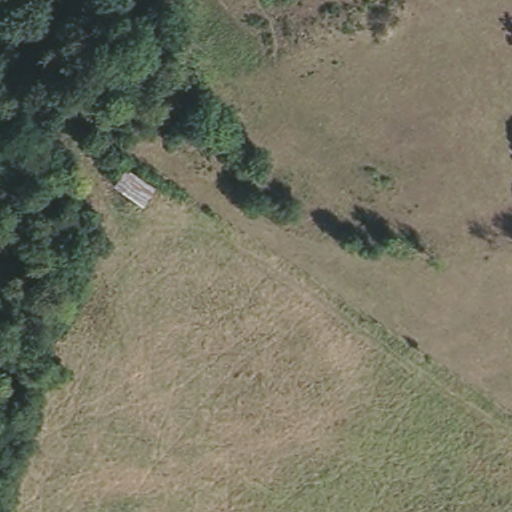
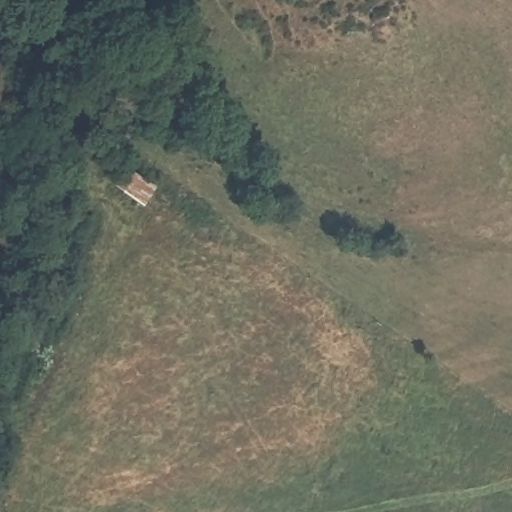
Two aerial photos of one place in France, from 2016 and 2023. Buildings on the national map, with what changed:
unchanged [(154,180),(146,202),(109,180),(126,160),(154,180)]

